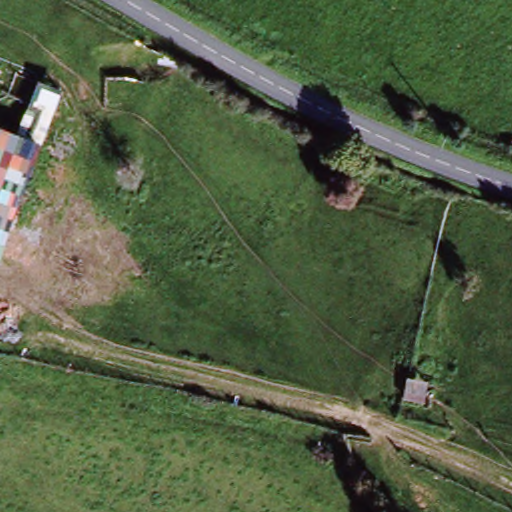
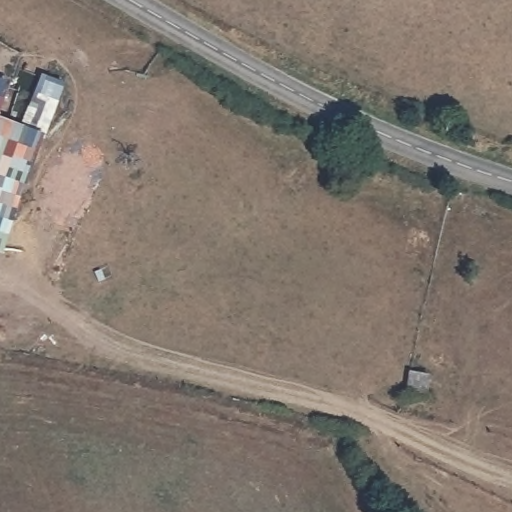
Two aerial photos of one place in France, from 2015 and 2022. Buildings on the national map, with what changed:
unchanged [(42,77),(66,85),(46,136),(4,256),(0,255),(0,118),(21,125),(42,77)]

